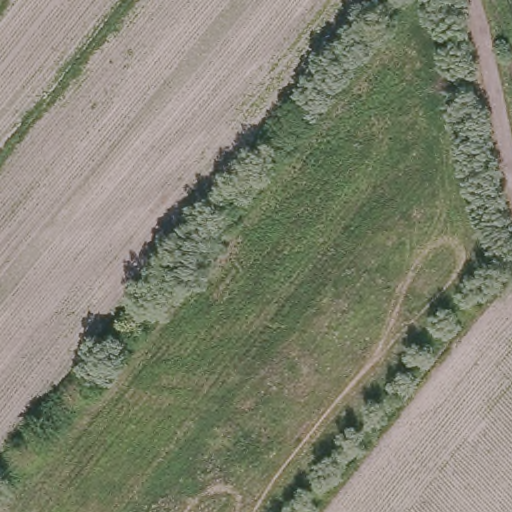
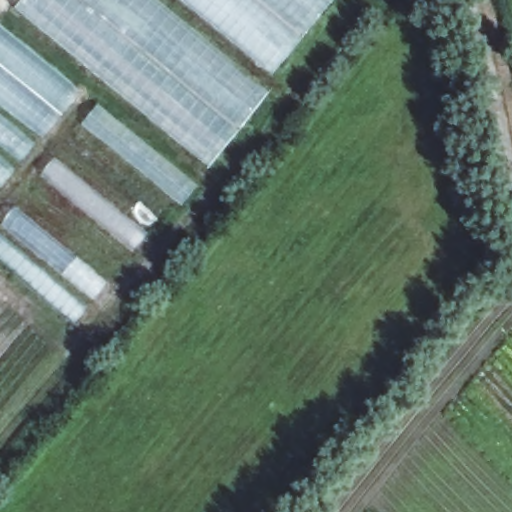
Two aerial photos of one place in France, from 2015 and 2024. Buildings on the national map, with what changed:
new [(156,0),(272,97),(208,171),(15,12),(25,0),(156,0)]
new [(273,77),(179,0),(333,0),(335,2),(273,77)]
new [(0,189),(0,29),(83,96),(0,189)]
new [(98,105),(199,187),(182,208),(81,126),(98,105)]

